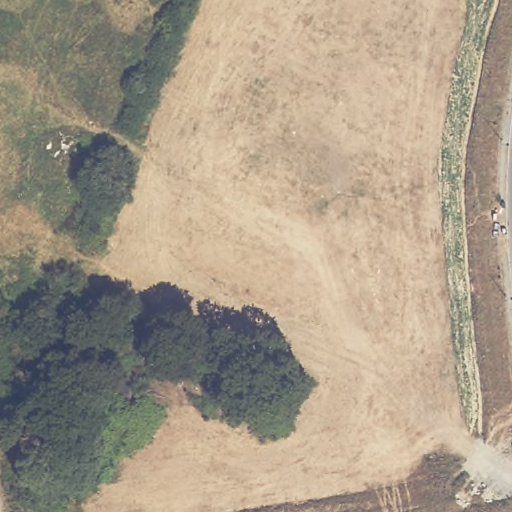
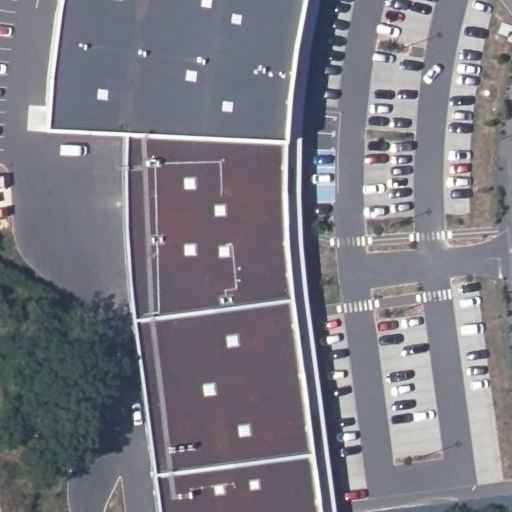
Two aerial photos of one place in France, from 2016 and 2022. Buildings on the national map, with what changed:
new [(130,319),(124,249),(122,167),(122,134),(44,130),(47,74),(56,6),(57,0),(319,0),(308,56),(302,123),(299,204),(303,260),(308,318),(334,512),(155,512),(151,474),(130,319)]

